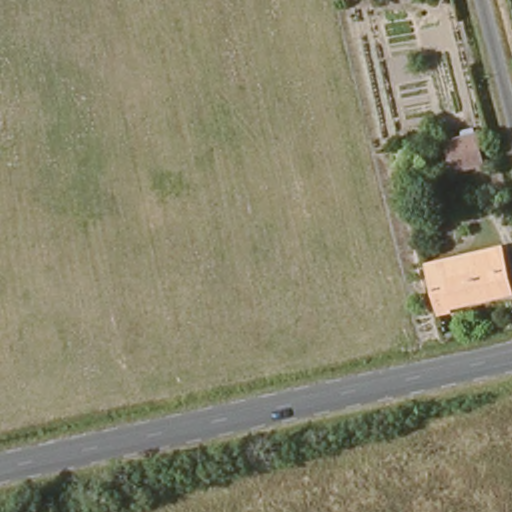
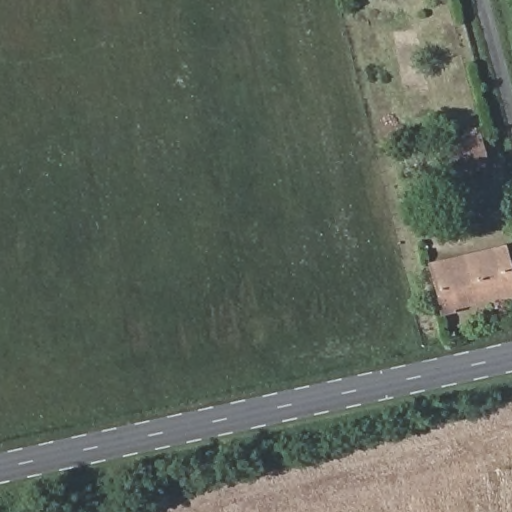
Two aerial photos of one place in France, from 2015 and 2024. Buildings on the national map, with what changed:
unchanged [(456,162),(450,143),(473,138),(479,157),(456,162)]
unchanged [(437,303),(427,261),(434,260),(494,249),(503,290),(444,302),(437,303)]

